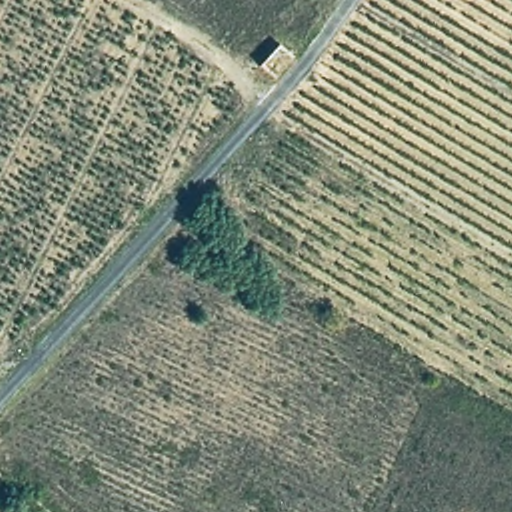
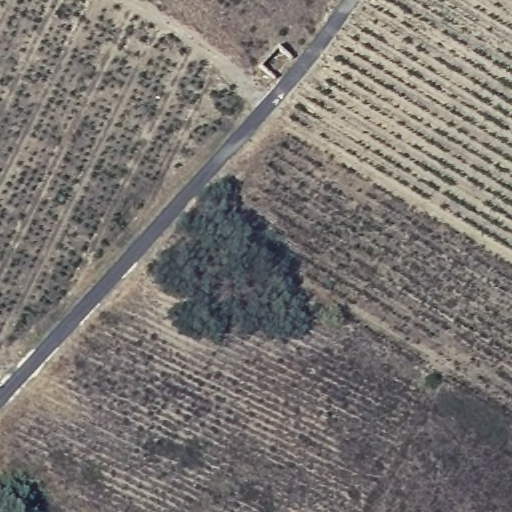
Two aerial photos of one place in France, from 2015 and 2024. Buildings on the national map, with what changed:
unchanged [(277,46),(287,54),(268,73),(259,64),(277,46)]

